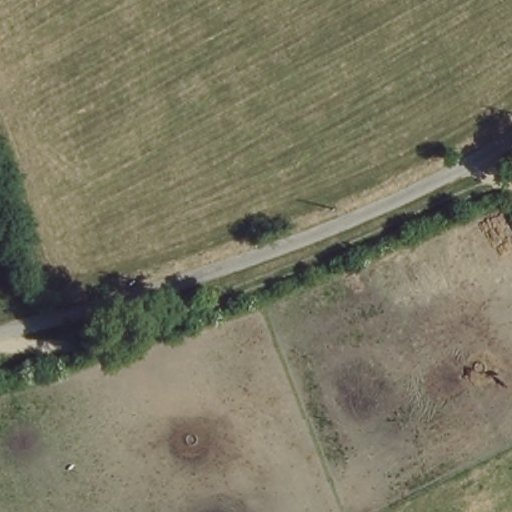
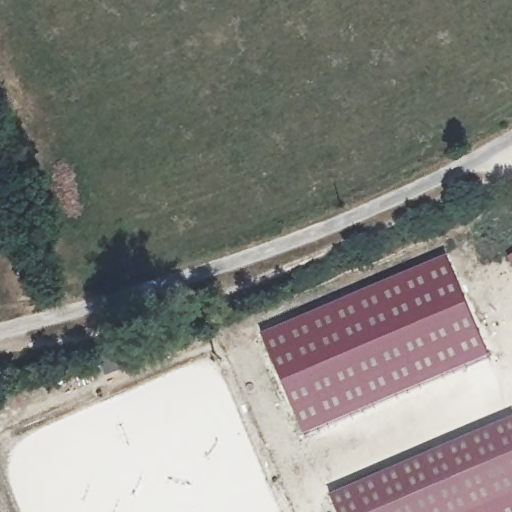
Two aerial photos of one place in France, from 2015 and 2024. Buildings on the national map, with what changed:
new [(445,258),(492,359),(307,438),(264,340),(445,258)]
new [(512,267),(509,259),(512,258),(512,267)]
new [(512,500),(484,512),(334,512),(328,499),(512,420),(512,500)]

